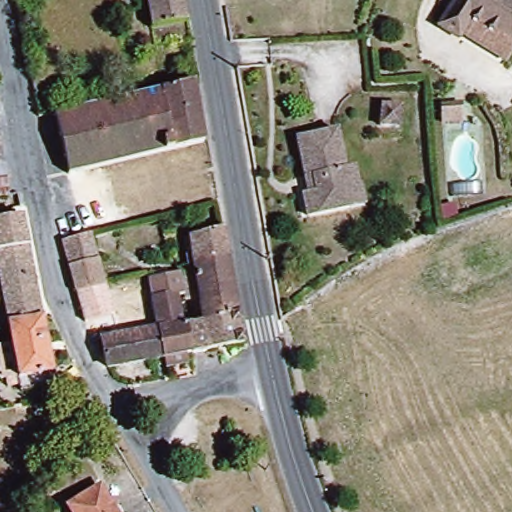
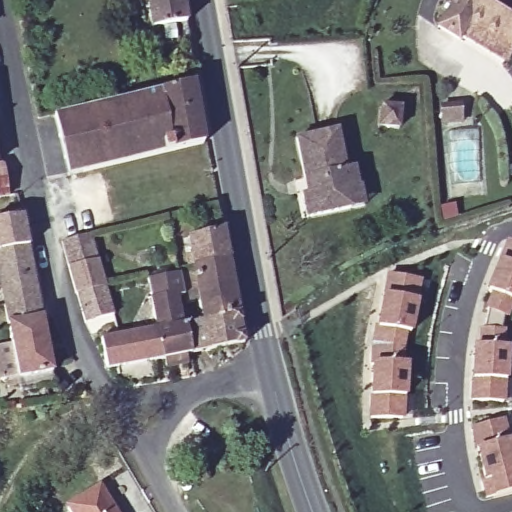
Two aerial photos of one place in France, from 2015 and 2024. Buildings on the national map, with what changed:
unchanged [(153,37),(145,0),(182,0),(188,30),(153,37)]
unchanged [(437,31),(456,0),(507,0),(512,3),(512,51),(511,53),(502,67),(460,40),(457,44),(437,31)]
unchanged [(206,144),(67,177),(55,113),(151,94),(195,85),(206,144)]
unchanged [(402,124),(383,123),(384,102),(404,103),(402,124)]
unchanged [(445,106),(464,104),(466,122),(448,124),(445,106)]
unchanged [(353,211),(308,220),(303,197),(309,195),(306,180),(298,139),(339,133),(347,172),(355,170),(360,189),(365,208),(353,211)]
unchanged [(4,203),(0,204),(0,183),(4,203)]
unchanged [(27,248),(0,253),(0,221),(20,217),(27,248)]
unchanged [(192,254),(186,226),(222,218),(227,248),(192,254)]
unchanged [(76,282),(68,255),(60,230),(89,223),(97,247),(105,275),(76,282)]
new [(485,295),(506,245),(512,248),(512,306),(509,305),(503,321),(483,313),(490,297),(485,295)]
unchanged [(27,248),(35,285),(1,293),(0,290),(0,253),(27,248)]
unchanged [(202,309),(192,254),(227,248),(237,303),(243,334),(224,337),(191,343),(185,312),(202,309)]
unchanged [(176,258),(181,281),(177,282),(183,313),(185,312),(191,343),(161,349),(161,348),(156,316),(147,265),(174,259),(176,258)]
new [(372,353),(387,280),(417,285),(412,305),(414,306),(408,338),(402,337),(402,370),(404,370),(403,402),(401,402),(400,424),(370,423),(372,353)]
unchanged [(42,322),(8,329),(1,293),(35,285),(42,322)]
unchanged [(101,330),(100,326),(156,316),(161,348),(107,358),(101,330)]
unchanged [(22,394),(8,329),(42,322),(55,387),(22,394)]
new [(473,351),(478,351),(479,334),(500,335),(499,352),(505,354),(503,385),(502,385),(501,407),(470,405),(473,351)]
new [(507,446),(512,465),(512,478),(510,479),(512,487),(512,497),(493,500),(489,484),(485,485),(472,432),(501,425),(507,446)]
unchanged [(112,512),(68,512),(67,510),(99,490),(112,512)]

